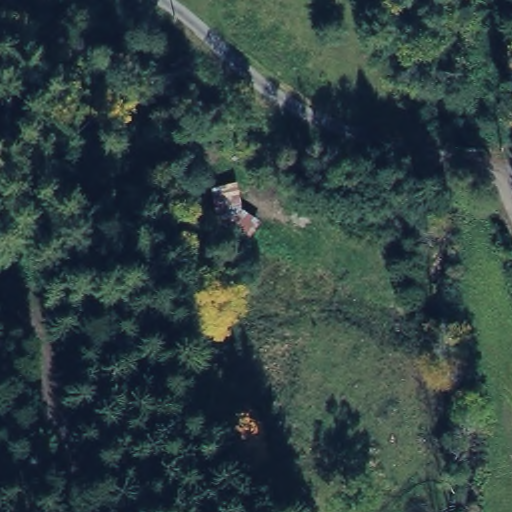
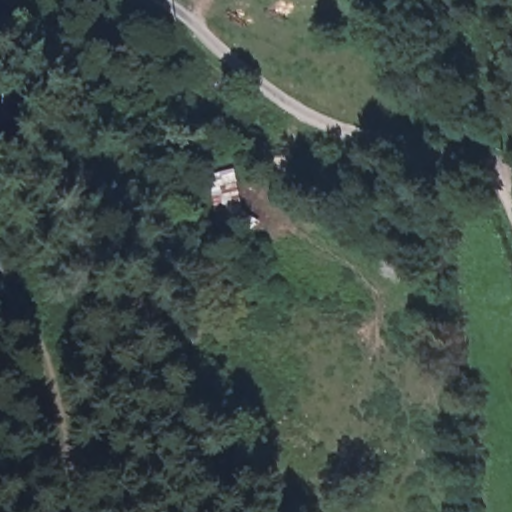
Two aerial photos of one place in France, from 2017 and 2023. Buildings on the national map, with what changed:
unchanged [(264,220),(250,242),(228,225),(242,203),(264,220)]

